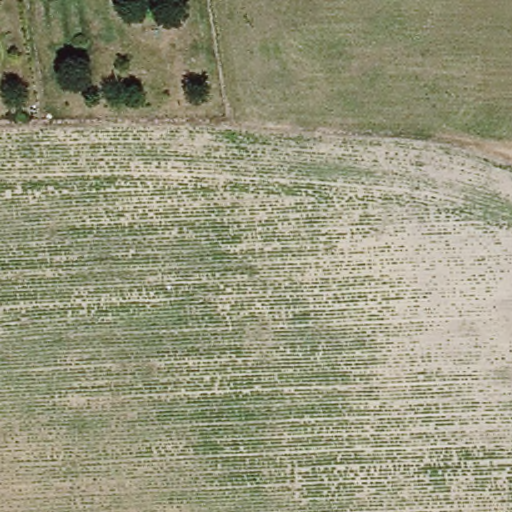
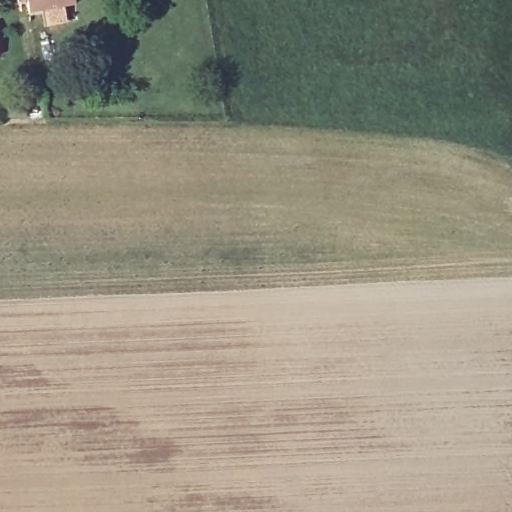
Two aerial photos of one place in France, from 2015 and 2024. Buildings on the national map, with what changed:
new [(66,10),(69,24),(46,29),(43,14),(31,16),(28,0),(76,0),(77,8),(66,10)]

